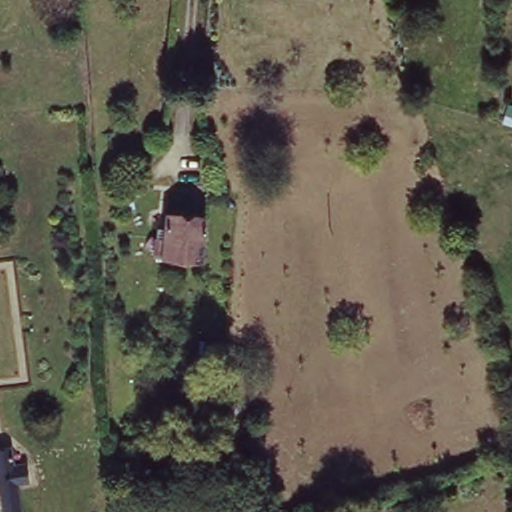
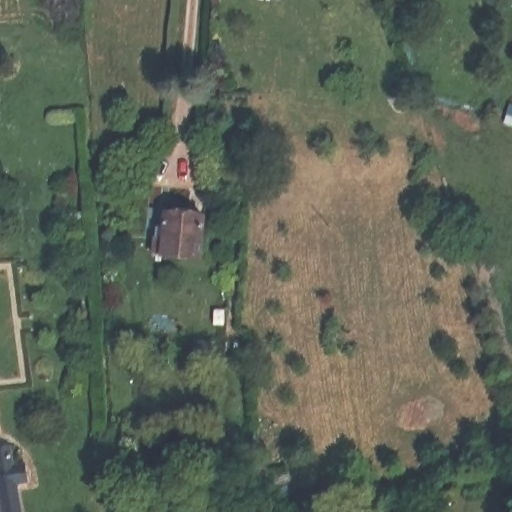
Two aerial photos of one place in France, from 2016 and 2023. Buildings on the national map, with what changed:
unchanged [(212,210),(206,265),(159,260),(161,243),(173,244),(177,205),(212,210)]
unchanged [(28,512),(4,512),(0,481),(0,457),(19,454),(28,512)]

